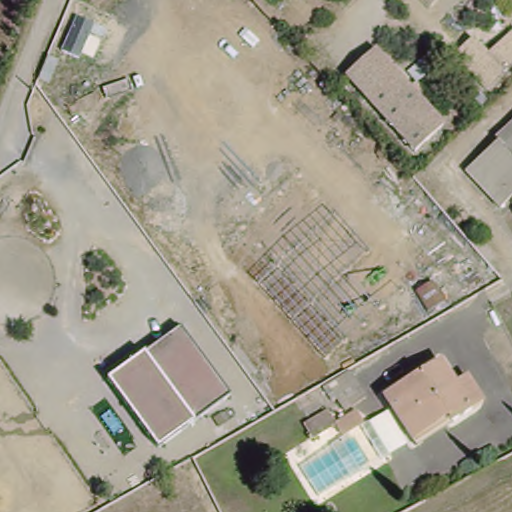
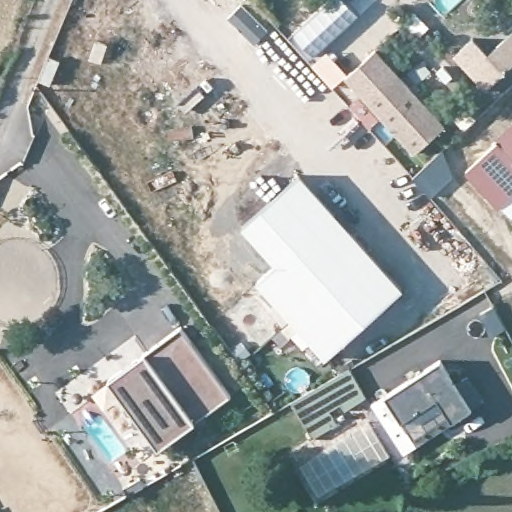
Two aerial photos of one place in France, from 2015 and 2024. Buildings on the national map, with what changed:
unchanged [(483,90),(467,72),(512,30),(512,63),(483,90)]
unchanged [(442,127),(412,154),(342,77),(372,51),(442,127)]
unchanged [(502,205),(469,167),(501,137),(498,135),(512,122),(512,194),(502,205)]
new [(303,174),(405,290),(327,358),(260,281),(279,263),(245,225),(303,174)]
new [(32,192),(64,203),(57,224),(25,212),(32,192)]
unchanged [(195,421),(158,447),(107,380),(147,353),(182,328),(230,394),(195,421)]
unchanged [(415,441),(387,396),(442,361),(457,385),(470,376),(486,401),(473,410),(454,422),(418,446),(415,441)]
new [(369,397),(348,410),(340,397),(326,407),(337,426),(314,439),(291,402),(325,382),(327,387),(353,370),(369,397)]
demolished [(337,426),(314,440),(305,424),(328,410),(337,426)]

